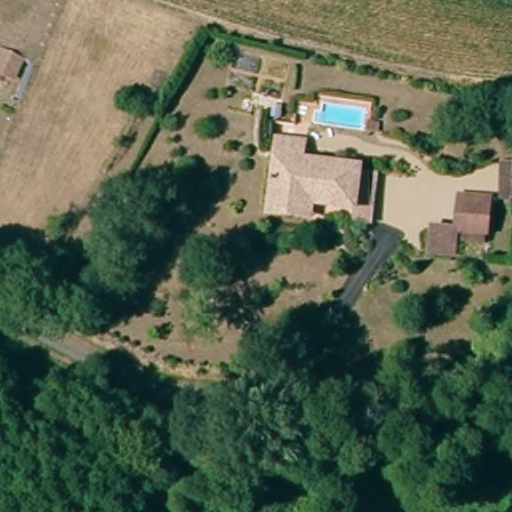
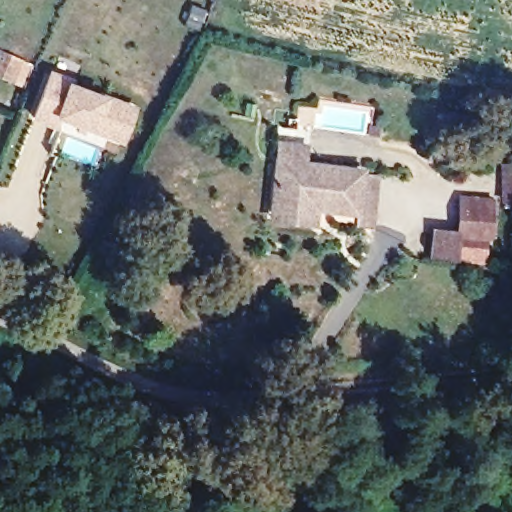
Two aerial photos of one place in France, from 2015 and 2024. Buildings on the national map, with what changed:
new [(95,131),(94,134),(56,120),(55,130),(28,119),(49,71),(70,78),(66,82),(106,98),(108,96),(137,107),(122,145),(95,131)]
unchanged [(377,126),(376,134),(366,132),(366,124),(377,126)]
unchanged [(276,214),(277,206),(283,156),(285,138),(310,141),(308,160),(364,166),(360,206),(317,201),(317,210),(315,218),(276,214)]
unchanged [(465,199),(494,202),(491,236),(490,245),(460,242),(458,263),(430,259),(433,230),(461,233),(465,199)]

